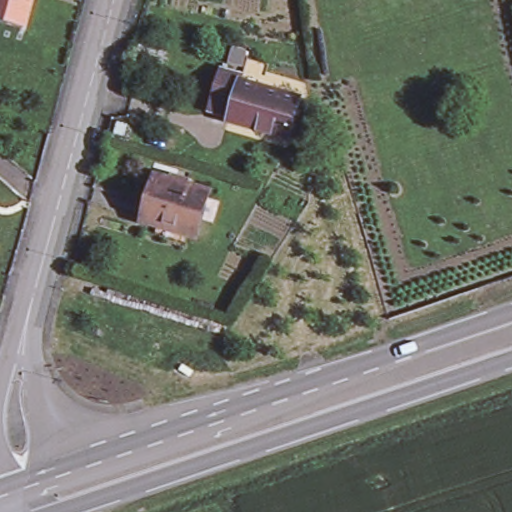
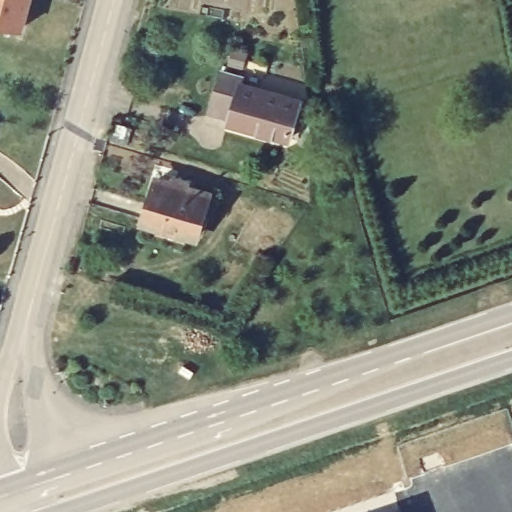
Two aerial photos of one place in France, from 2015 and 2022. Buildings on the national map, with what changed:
unchanged [(0,17),(0,0),(30,0),(25,15),(23,23),(20,22),(0,17)]
unchanged [(292,138),(230,118),(232,114),(212,108),(225,67),(247,74),(245,79),(305,99),(292,138)]
unchanged [(155,235),(159,223),(147,220),(160,175),(173,179),(175,174),(193,179),(192,185),(210,190),(195,234),(188,232),(184,244),(155,235)]

